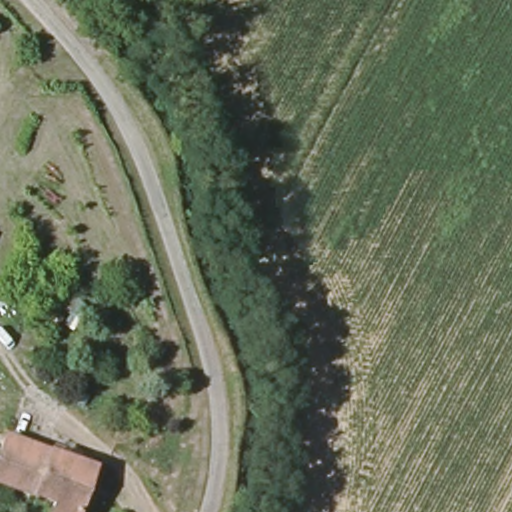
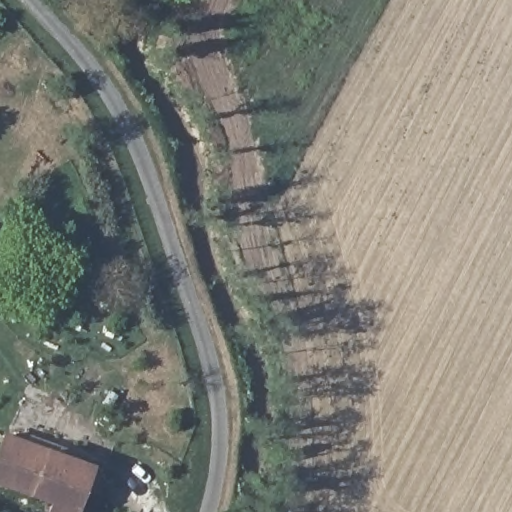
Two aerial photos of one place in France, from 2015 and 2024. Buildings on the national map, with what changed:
unchanged [(74,512),(48,512),(50,505),(0,485),(0,441),(1,436),(89,470),(74,512)]

